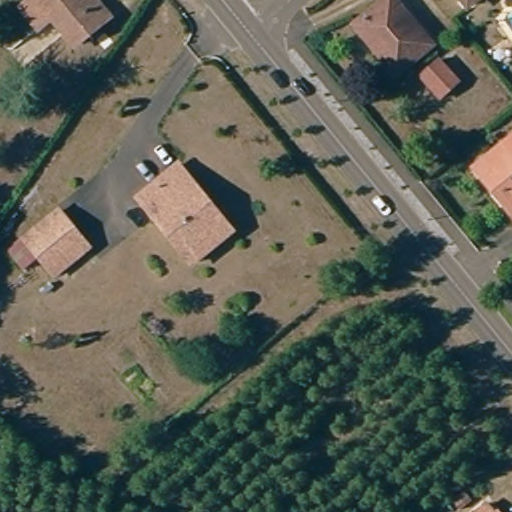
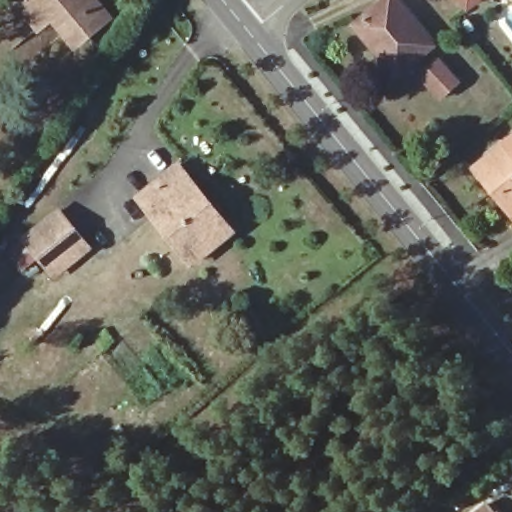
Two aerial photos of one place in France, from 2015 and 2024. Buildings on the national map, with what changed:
unchanged [(56,12),(40,25),(25,5),(32,0),(97,0),(112,19),(82,44),(56,12)]
unchanged [(392,0),(427,42),(393,70),(356,22),(382,0),(392,0)]
unchanged [(463,0),(475,0),(468,6),(463,0)]
unchanged [(436,55),(455,77),(434,95),(415,71),(436,55)]
unchanged [(512,139),(512,216),(473,169),(512,139)]
unchanged [(192,261),(139,195),(156,182),(180,164),(221,215),(232,230),(192,261)]
unchanged [(62,268),(49,278),(19,240),(52,215),(73,241),(82,252),(62,268)]
unchanged [(493,498),(504,512),(477,512),(493,498)]

